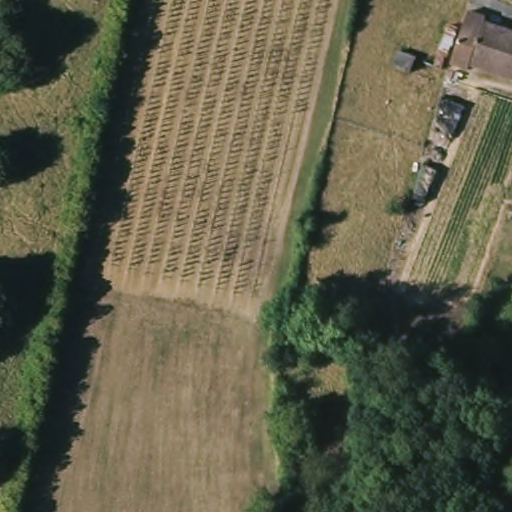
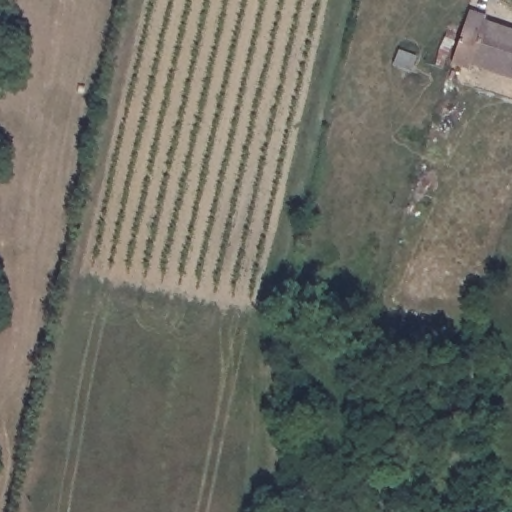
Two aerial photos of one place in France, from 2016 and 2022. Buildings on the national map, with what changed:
unchanged [(472,8),(491,16),(489,22),(512,31),(512,78),(473,64),(471,67),(455,60),(472,8)]

